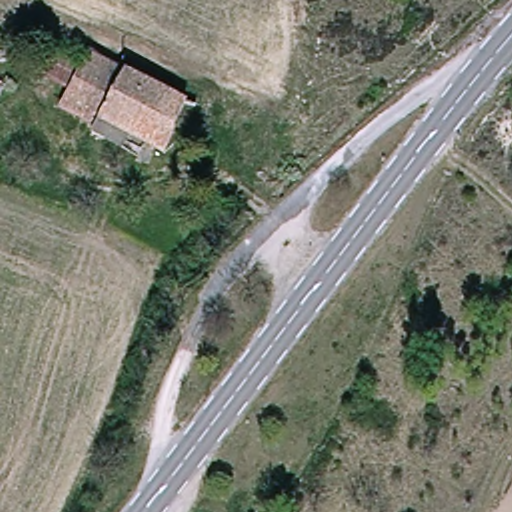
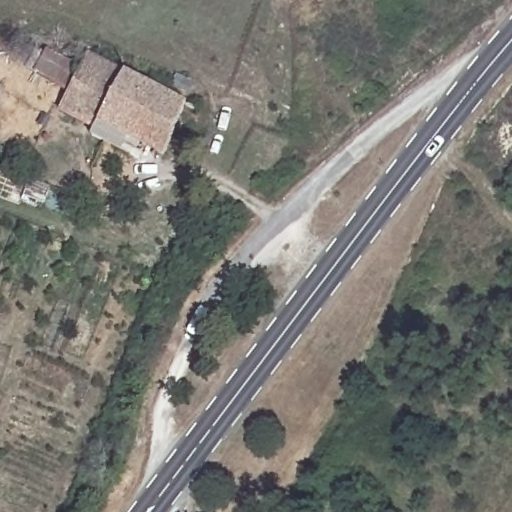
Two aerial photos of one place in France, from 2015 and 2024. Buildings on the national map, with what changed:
unchanged [(57,106),(27,91),(50,48),(55,41),(85,56),(57,106)]
unchanged [(143,90),(131,111),(137,114),(124,141),(92,126),(87,135),(52,118),(57,106),(85,56),(143,90)]
unchanged [(0,95),(0,81),(5,85),(0,95)]
unchanged [(137,114),(131,111),(143,90),(185,110),(160,160),(124,141),(137,114)]

